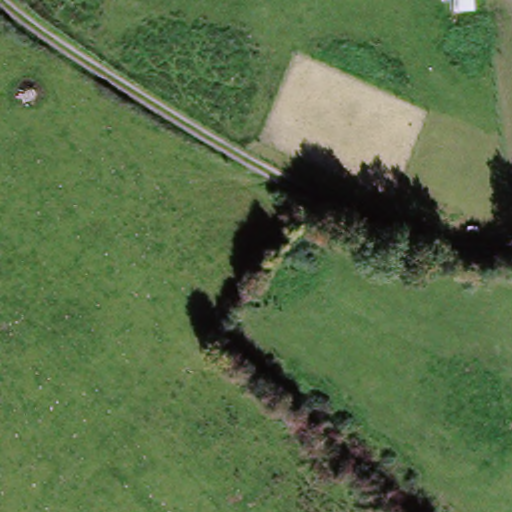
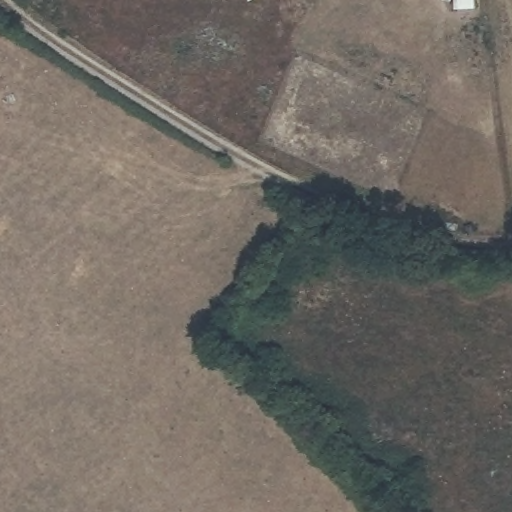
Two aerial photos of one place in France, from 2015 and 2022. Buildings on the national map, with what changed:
unchanged [(476,0),(476,14),(449,15),(449,0),(476,0)]

